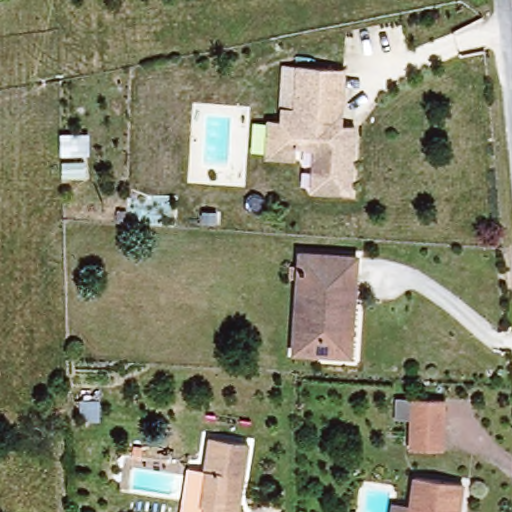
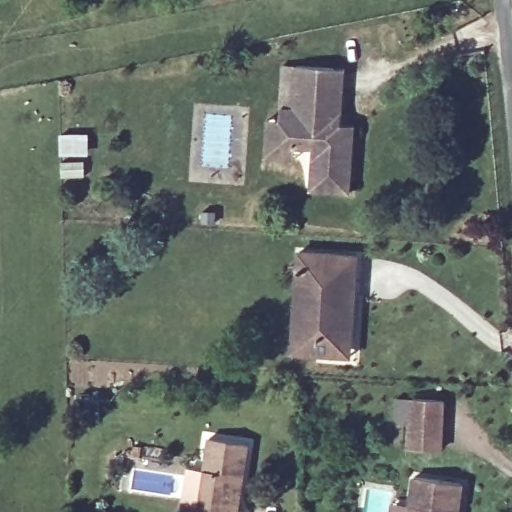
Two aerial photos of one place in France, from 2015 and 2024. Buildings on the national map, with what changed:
unchanged [(277,119),(278,106),(292,108),(293,63),(332,66),(342,67),(339,111),(338,123),(352,124),(351,134),(347,192),(308,189),(311,146),(276,144),(275,157),(262,155),(265,118),(277,119)]
unchanged [(260,197),(270,204),(263,212),(254,205),(260,197)]
unchanged [(360,271),(362,271),(361,295),(352,295),(348,347),(324,345),(323,353),(297,350),(304,249),(361,254),(360,271)]
unchanged [(300,264),(300,276),(293,275),(294,263),(300,264)]
unchanged [(411,446),(411,417),(397,416),(397,398),(442,399),(442,447),(411,446)]
unchanged [(195,473),(205,474),(210,441),(247,446),(238,512),(203,512),(204,508),(201,507),(190,506),(195,473)]
unchanged [(467,488),(463,512),(415,512),(420,481),(467,488)]

